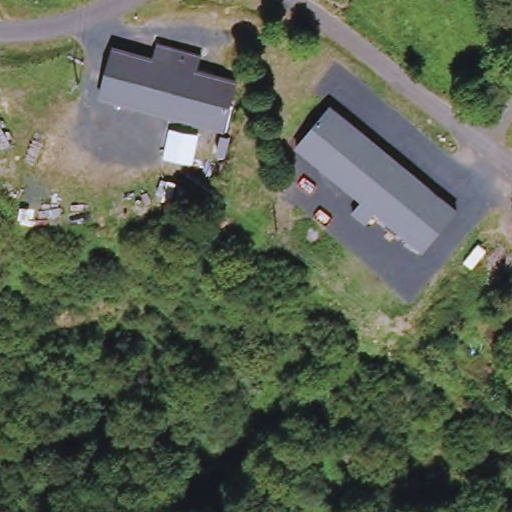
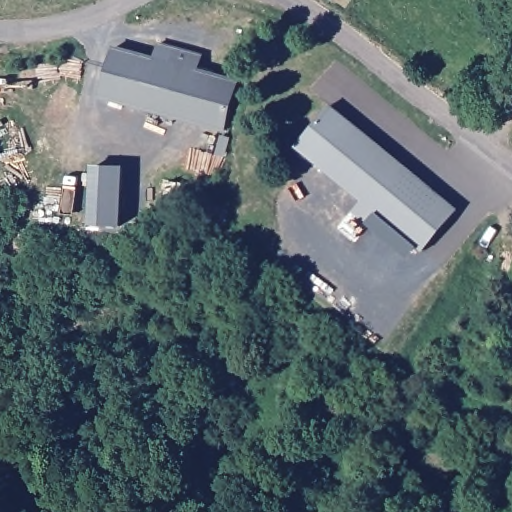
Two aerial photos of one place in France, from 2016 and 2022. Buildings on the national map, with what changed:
unchanged [(115,50),(171,65),(175,49),(202,57),(198,72),(239,83),(225,132),(101,99),(115,50)]
unchanged [(331,105),(455,207),(423,250),(375,210),(366,222),(352,210),(361,199),(296,147),(331,105)]
new [(93,166),(125,166),(124,226),(92,226),(93,166)]

